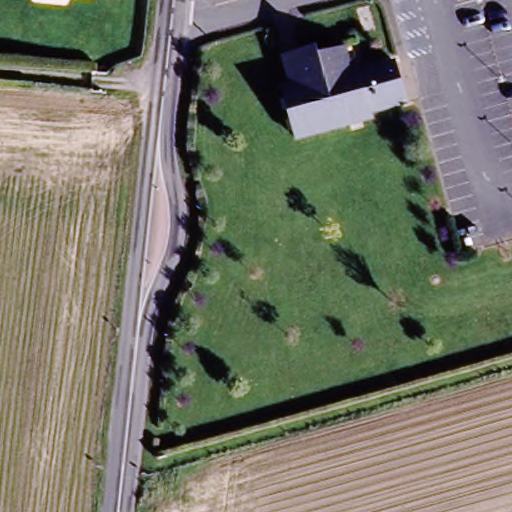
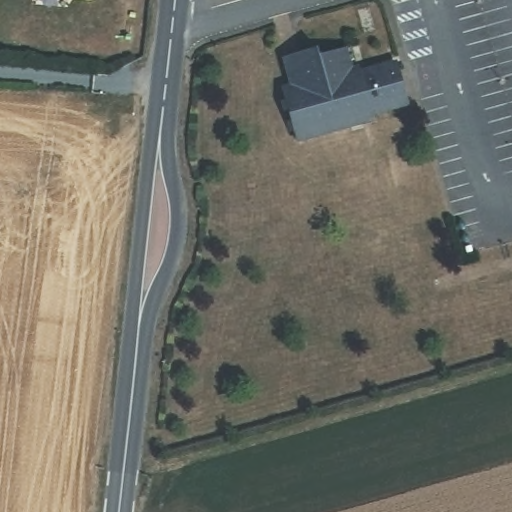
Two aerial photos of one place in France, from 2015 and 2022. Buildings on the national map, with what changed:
unchanged [(292,89),(284,60),(313,51),(315,59),(342,52),(348,73),(358,70),(360,76),(394,66),(405,107),(371,116),(373,121),(296,143),(282,92),(292,89)]

